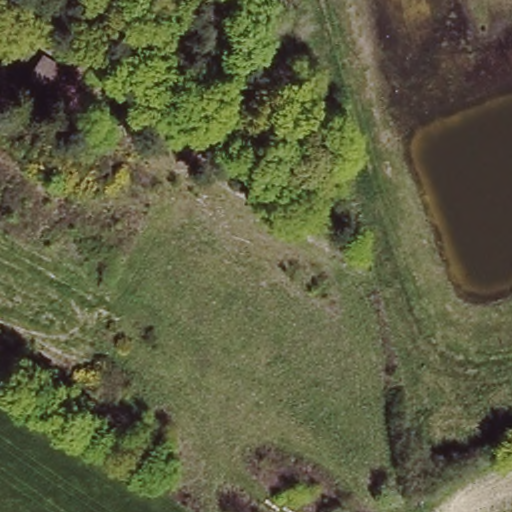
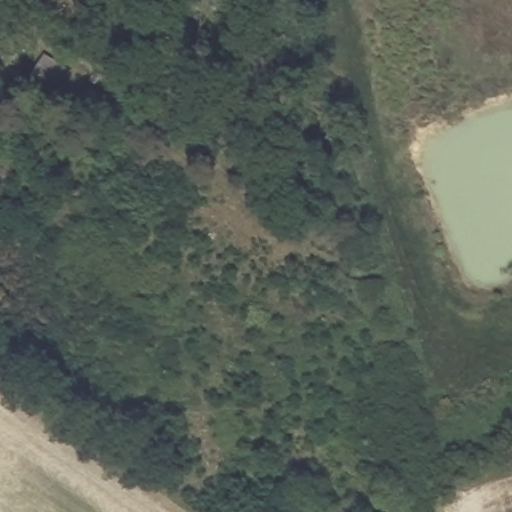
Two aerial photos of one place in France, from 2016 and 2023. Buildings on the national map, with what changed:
unchanged [(32,87),(30,92),(22,87),(34,66),(40,57),(65,72),(60,81),(50,98),(32,87)]

